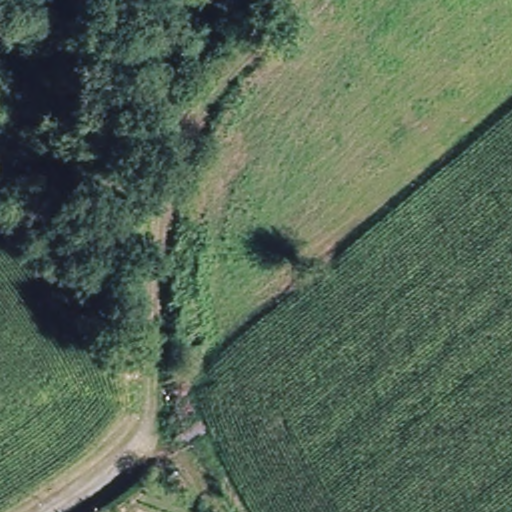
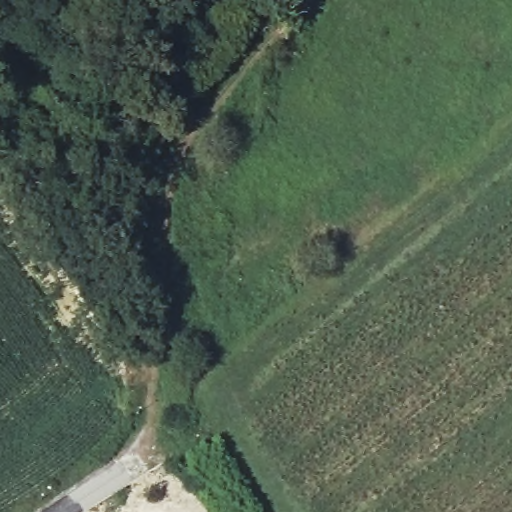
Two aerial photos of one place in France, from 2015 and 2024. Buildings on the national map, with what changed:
[]

